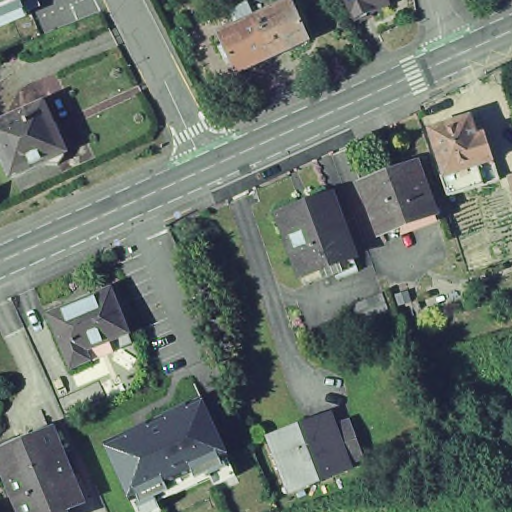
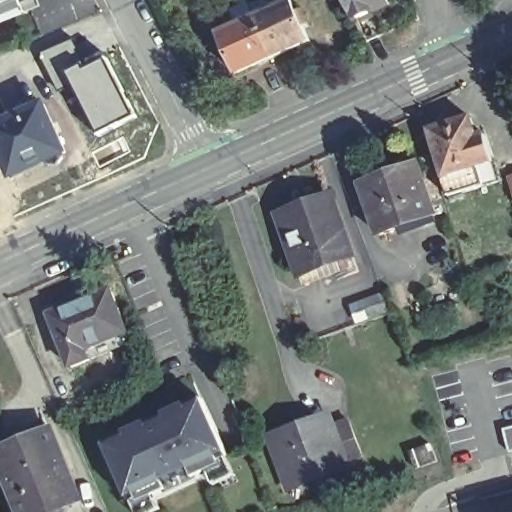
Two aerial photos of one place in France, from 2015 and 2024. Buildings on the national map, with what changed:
unchanged [(0,0),(29,0),(0,11),(0,0)]
unchanged [(352,23),(341,0),(382,0),(385,8),(352,23)]
unchanged [(225,48),(242,39),(235,24),(254,14),(255,18),(257,20),(261,30),(297,14),(316,54),(280,70),(243,88),(225,48)]
new [(73,39),(85,64),(67,73),(72,85),(58,91),(41,53),(73,39)]
new [(85,64),(85,66),(107,56),(137,117),(99,137),(72,85),(67,73),(85,64)]
unchanged [(61,152),(59,153),(60,156),(54,164),(44,164),(42,161),(8,176),(0,158),(0,123),(40,105),(61,152)]
unchanged [(445,175),(432,130),(472,118),(478,138),(485,135),(494,161),(468,169),(474,188),(449,196),(442,177),(442,176),(445,175)]
unchanged [(435,214),(380,234),(362,185),(418,164),(435,214)]
unchanged [(510,177),(512,176),(512,183),(510,177)]
unchanged [(358,249),(357,249),(362,261),(312,279),(285,210),(336,191),(358,249)]
demolished [(470,291),(431,304),(426,288),(463,274),(465,274),(470,291)]
unchanged [(129,332),(87,350),(90,359),(71,366),(50,314),(111,288),(129,332)]
unchanged [(387,311),(356,323),(350,307),(381,294),(387,311)]
unchanged [(200,397),(230,460),(135,501),(106,440),(200,397)]
unchanged [(362,462),(345,469),(346,472),(291,493),(273,444),(328,424),(332,433),(349,426),(362,462)]
unchanged [(45,433),(72,502),(55,509),(56,512),(40,512),(12,446),(45,433)]
unchanged [(0,470),(0,441),(9,438),(12,446),(40,512),(17,512),(0,470)]

